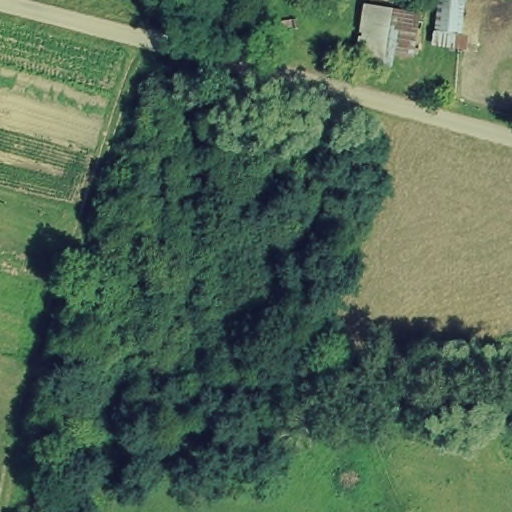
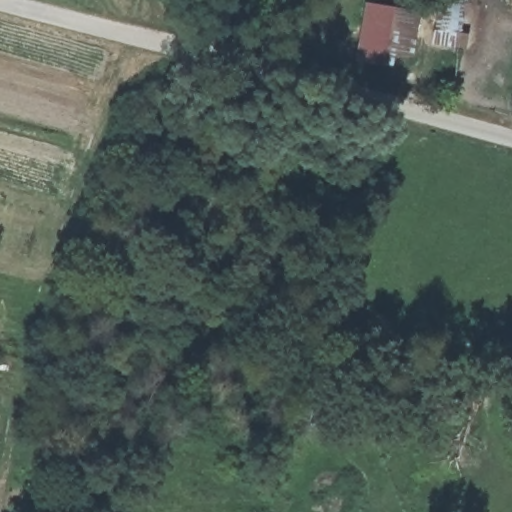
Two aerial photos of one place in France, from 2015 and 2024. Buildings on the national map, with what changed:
unchanged [(412,56),(394,53),(392,67),(353,60),(364,0),(420,8),(412,56)]
unchanged [(432,46),(436,0),(465,0),(460,47),(432,46)]

